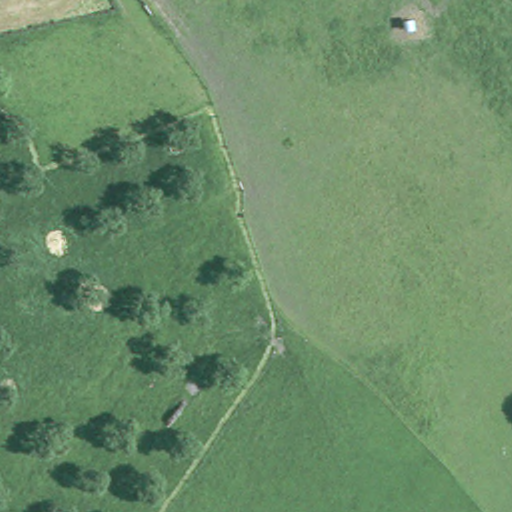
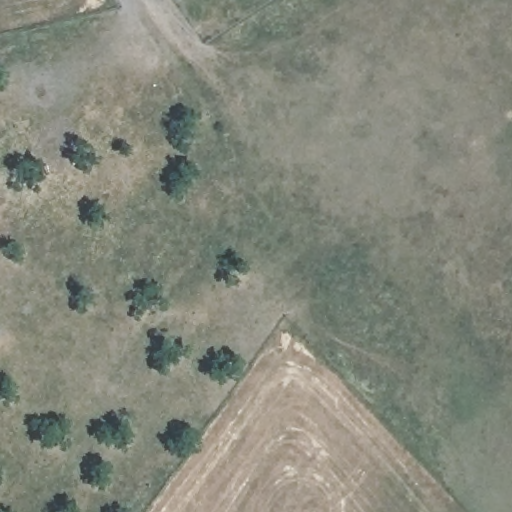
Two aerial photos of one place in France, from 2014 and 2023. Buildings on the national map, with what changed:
[]

